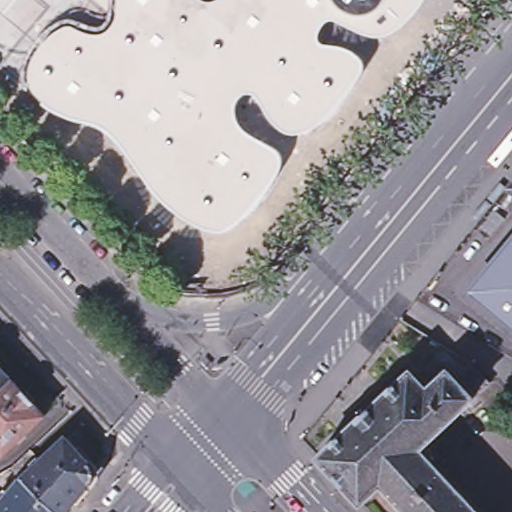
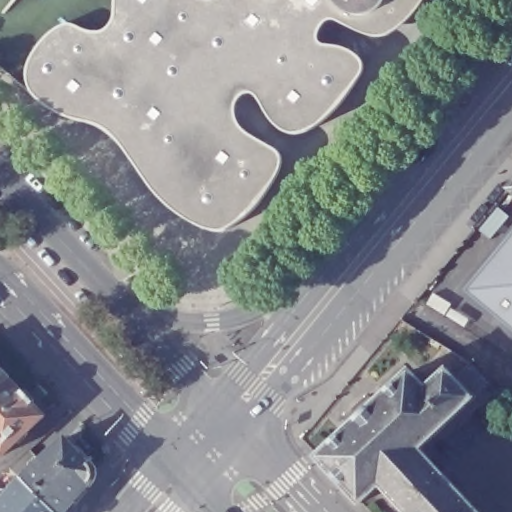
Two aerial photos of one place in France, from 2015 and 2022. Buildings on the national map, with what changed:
unchanged [(0,64),(0,0),(92,0),(117,19),(118,5),(118,0),(203,0),(209,2),(217,0),(426,0),(417,13),(402,26),(388,35),(375,36),(361,32),(343,25),(337,20),(330,20),(323,25),(320,35),(320,41),(327,44),(342,46),(355,52),(362,60),(365,66),(362,74),(352,87),(332,110),(313,127),(298,132),(288,131),(280,124),(270,114),(262,101),(257,92),(250,91),(244,93),(237,101),(236,113),(241,125),(252,134),(265,143),(277,149),(281,156),(282,165),(275,180),(260,200),(244,217),(228,227),(216,228),(206,227),(190,218),(173,206),(160,194),(149,179),(138,163),(125,144),(113,131),(102,124),(91,120),(75,117),(60,111),(47,104),(37,96),(32,87),(13,74),(0,64)]
unchanged [(512,185),(512,191),(509,188),(512,185)]
unchanged [(512,242),(512,324),(472,290),(512,242)]
unchanged [(362,503),(320,458),(352,426),(345,418),(371,394),(378,402),(412,372),(428,390),(449,371),(456,379),(472,365),(490,385),(474,399),(420,450),(477,512),(408,512),(382,484),(362,503)]
unchanged [(3,455),(0,452),(0,368),(10,379),(45,416),(3,455)]
unchanged [(3,501),(22,479),(12,468),(31,450),(42,461),(65,438),(93,469),(93,477),(65,512),(0,512),(0,498),(3,501)]

